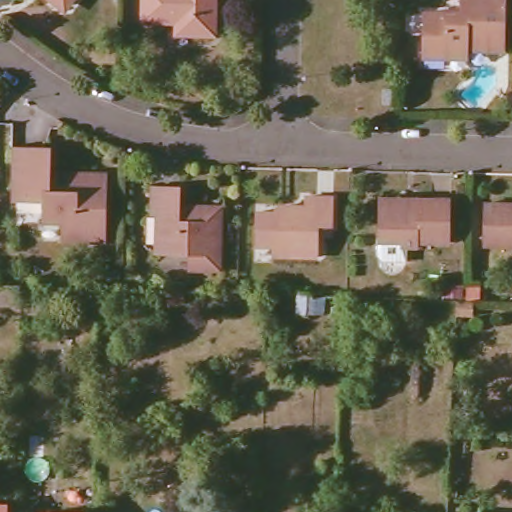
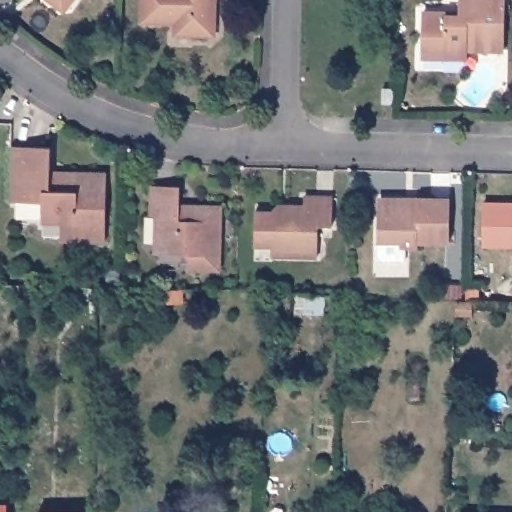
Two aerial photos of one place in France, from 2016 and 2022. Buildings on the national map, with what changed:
unchanged [(59,5),(52,0),(70,0),(66,4),(59,5)]
unchanged [(204,19),(204,34),(169,34),(169,20),(137,19),(137,0),(210,0),(210,18),(204,19)]
unchanged [(468,43),(468,53),(443,52),(443,46),(423,46),(423,8),(444,9),(447,12),(459,12),(459,0),(505,0),(504,44),(468,43)]
unchanged [(54,145),(55,177),(63,178),(63,171),(109,170),(108,238),(65,239),(64,219),(45,219),(45,200),(15,199),(16,144),(54,145)]
unchanged [(183,184),(183,207),(197,208),(203,204),(224,204),(223,253),(212,253),(211,269),(189,268),(190,253),(168,252),(159,242),(159,214),(156,213),(156,183),(183,184)]
unchanged [(332,192),(332,220),(317,220),(316,252),(271,249),(271,241),(254,240),(255,207),(289,208),(289,200),(319,202),(319,192),(332,192)]
unchanged [(445,229),(445,242),(413,241),(413,245),(401,244),(396,244),(396,241),(379,240),(373,234),(374,204),(406,204),(406,209),(413,209),(413,199),(446,199),(445,229)]
unchanged [(484,200),(512,201),(512,241),(484,241),(484,200)]
unchanged [(4,512),(0,512),(0,508),(4,508),(4,512)]

